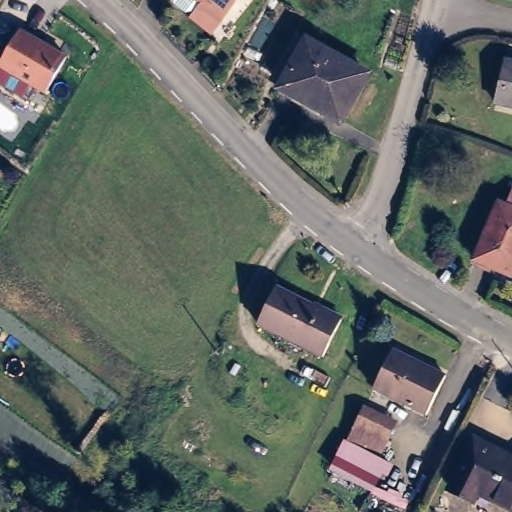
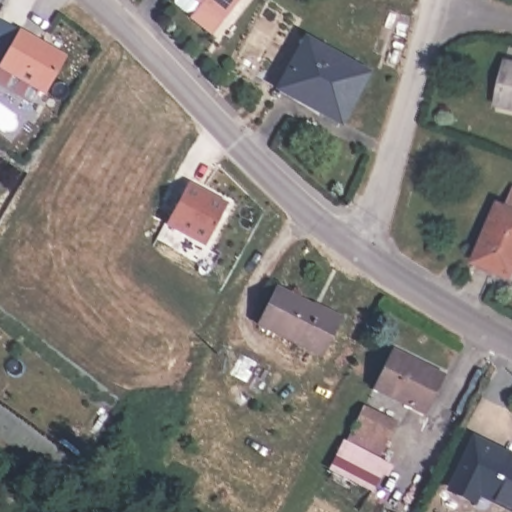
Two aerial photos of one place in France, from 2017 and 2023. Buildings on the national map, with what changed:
unchanged [(229,17),(207,1),(201,10),(196,11),(182,0),(242,0),(229,17)]
unchanged [(0,68),(0,67),(20,26),(68,55),(47,94),(0,68)]
unchanged [(330,121),(277,86),(303,47),(355,81),(330,121)]
unchanged [(497,98),(502,61),(512,64),(512,101),(497,98)]
new [(165,225),(190,184),(229,204),(205,246),(165,225)]
unchanged [(479,249),(501,195),(512,199),(512,262),(479,249)]
unchanged [(338,315),(319,350),(259,318),(277,284),(338,315)]
unchanged [(444,372),(423,412),(367,384),(387,343),(444,372)]
unchanged [(329,465),(363,410),(392,428),(380,452),(390,455),(374,490),(329,465)]
unchanged [(478,490),(475,498),(458,490),(480,442),(512,456),(512,505),(478,490)]

